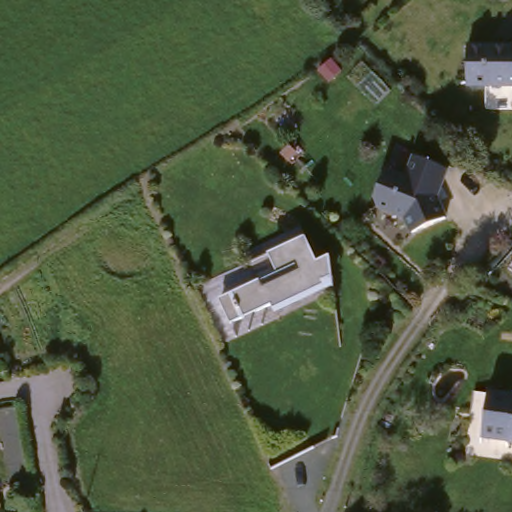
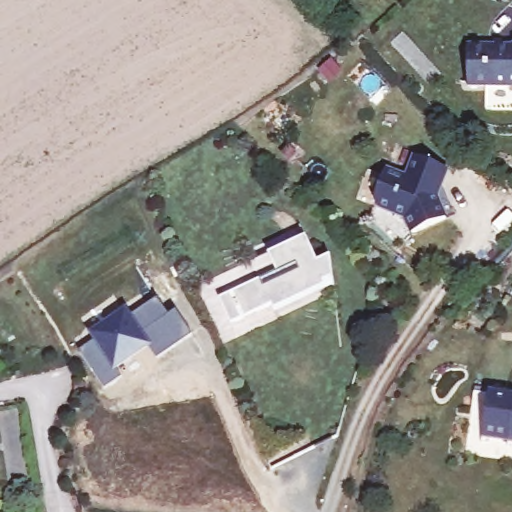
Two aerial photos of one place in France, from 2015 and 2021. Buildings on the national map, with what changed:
unchanged [(512,48),(512,93),(459,84),(468,44),(503,51),(512,48)]
unchanged [(399,216),(399,215),(371,205),(368,199),(379,169),(401,175),(408,154),(441,165),(431,191),(431,192),(441,214),(406,232),(399,216)]
unchanged [(304,226),(318,254),(332,249),(331,285),(272,310),(269,303),(236,320),(223,290),(256,272),(247,253),(304,226)]
new [(79,351),(93,342),(88,335),(126,308),(131,315),(158,298),(168,313),(176,308),(192,334),(156,357),(149,346),(117,368),(121,377),(103,388),(79,351)]
unchanged [(480,450),(487,391),(512,393),(512,453),(480,450)]

